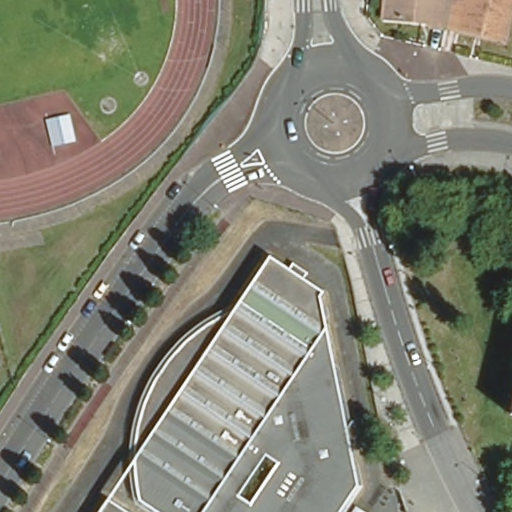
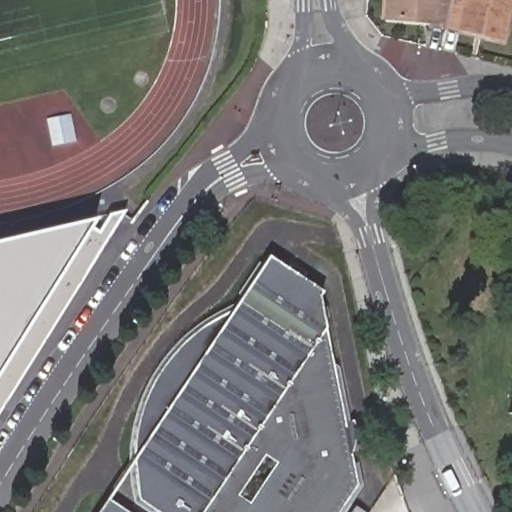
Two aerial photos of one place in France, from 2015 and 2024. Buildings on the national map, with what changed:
unchanged [(380,0),(448,0),(443,26),(443,28),(427,26),(428,20),(386,12),(378,10),(380,0)]
unchanged [(500,37),(443,26),(448,0),(508,0),(500,37)]
new [(122,211),(0,406),(0,370),(94,218),(122,211)]
new [(0,370),(0,241),(94,218),(0,370)]
unchanged [(130,490),(129,479),(127,469),(127,458),(127,447),(128,437),(130,426),(132,416),(135,406),(139,396),(144,386),(149,376),(154,367),(160,359),(167,350),(175,343),(182,335),(190,329),(199,322),(209,317),(218,312),(227,308),(263,255),(267,258),(313,288),(315,289),(341,435),(345,451),(350,484),(332,512),(150,512),(132,500),(130,490)]
unchanged [(512,401),(512,411),(510,410),(512,401)]
unchanged [(96,512),(105,499),(123,512),(96,512)]

